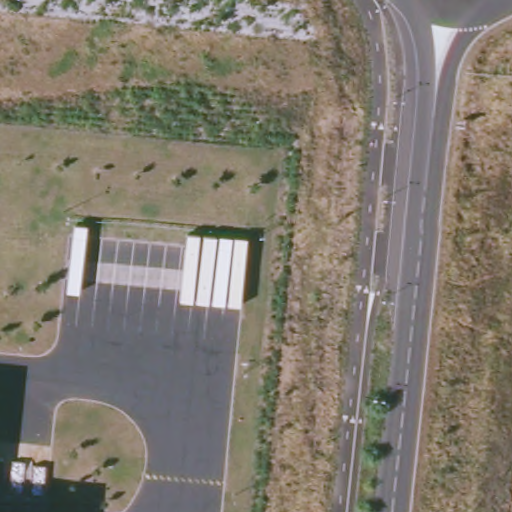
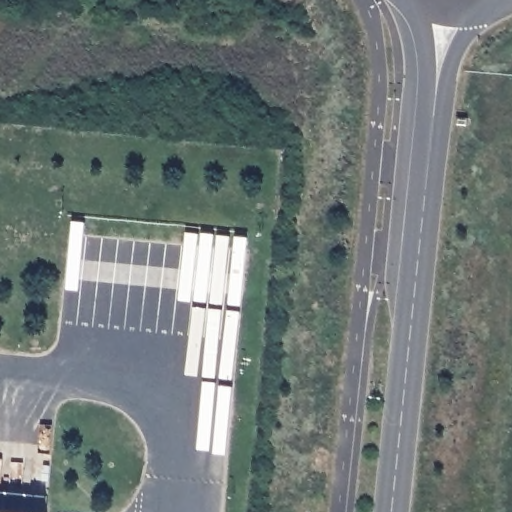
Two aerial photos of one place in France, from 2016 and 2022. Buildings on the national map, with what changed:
unchanged [(46,496),(46,512),(0,512),(0,492),(46,496)]

